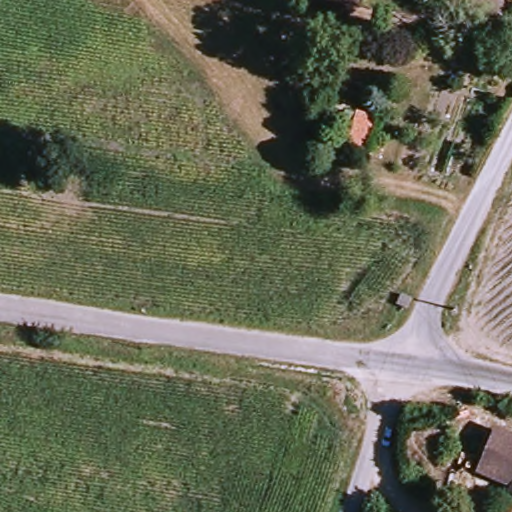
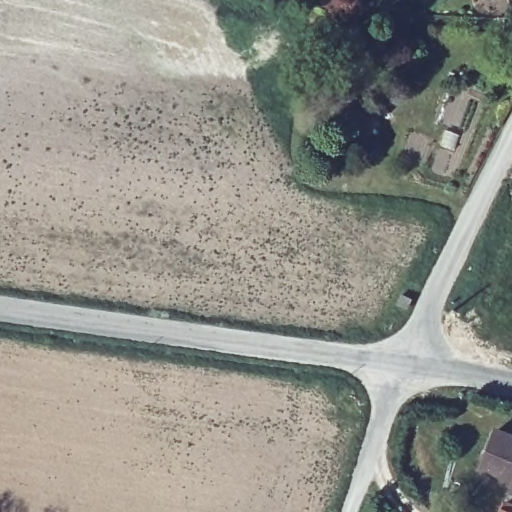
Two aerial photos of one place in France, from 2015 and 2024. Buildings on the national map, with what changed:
unchanged [(503,434),(512,438),(512,489),(484,477),(503,434)]

